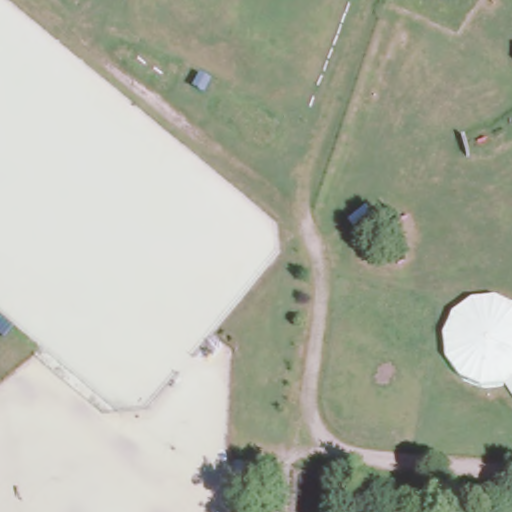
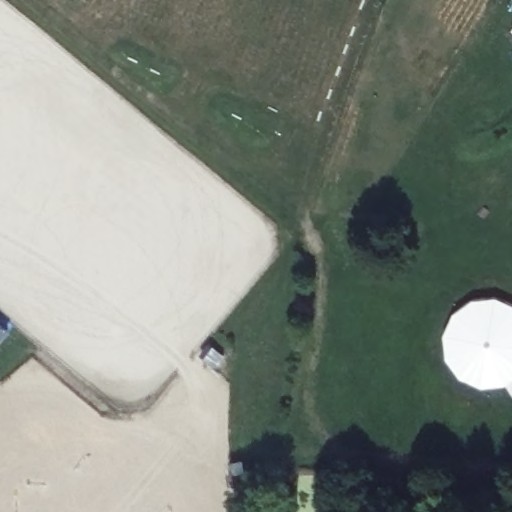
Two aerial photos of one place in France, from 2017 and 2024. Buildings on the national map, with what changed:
unchanged [(484,388),(462,379),(446,360),(443,335),(450,317),(472,299),(501,296),(512,303),(512,389),(509,386),(484,388)]

